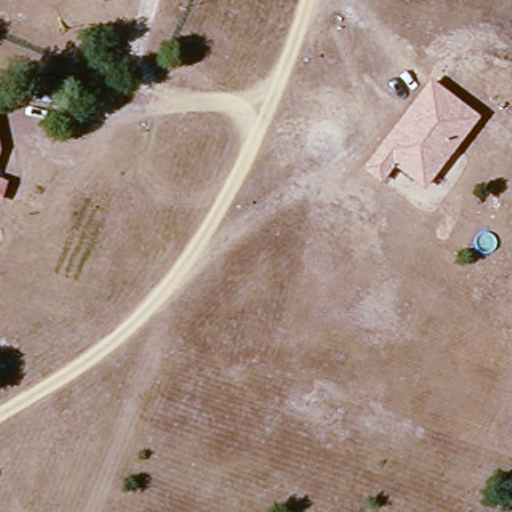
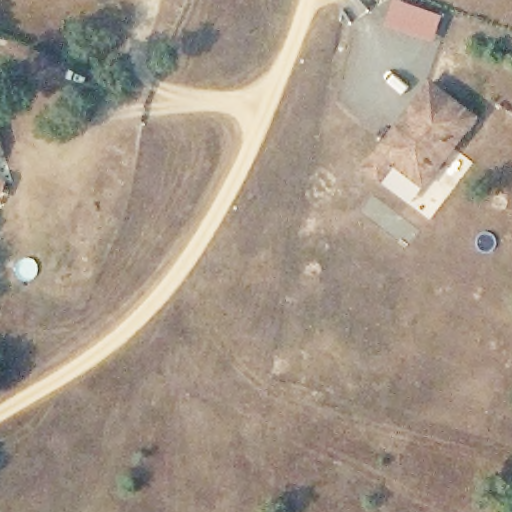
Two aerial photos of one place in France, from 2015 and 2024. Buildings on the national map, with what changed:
new [(393,0),(403,0),(444,15),(434,43),(384,26),(393,0)]
unchanged [(480,117),(425,189),(395,166),(381,182),(362,168),(431,79),(480,117)]

